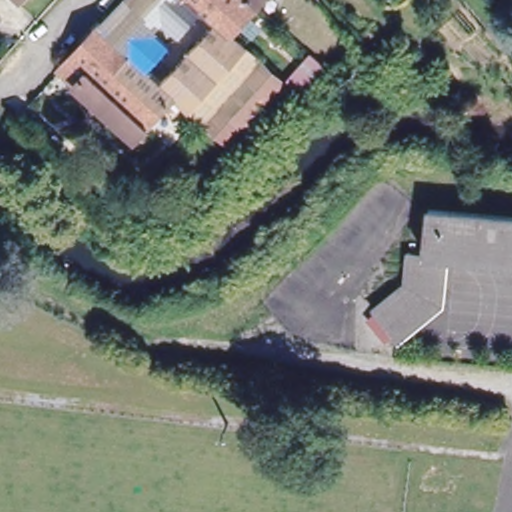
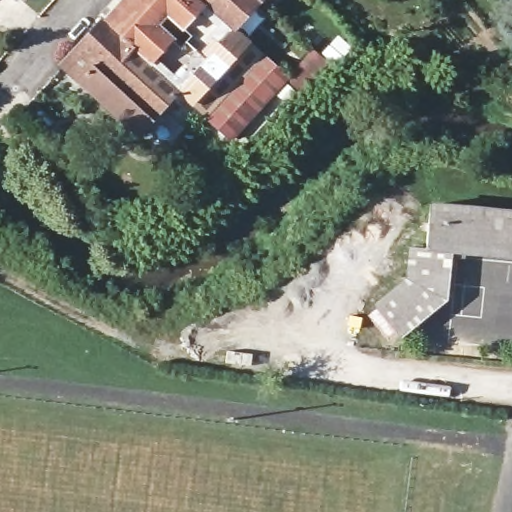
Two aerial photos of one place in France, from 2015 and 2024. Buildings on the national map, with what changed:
unchanged [(119,0),(256,0),(234,23),(288,72),(233,131),(202,103),(189,117),(166,97),(139,127),(64,59),(119,0)]
unchanged [(311,50),(329,66),(243,154),(195,110),(202,103),(233,131),(288,72),(311,50)]
unchanged [(433,200),(512,207),(512,252),(454,247),(428,245),(433,200)]
unchanged [(454,247),(449,290),(404,330),(377,300),(408,272),(411,244),(428,245),(454,247)]

